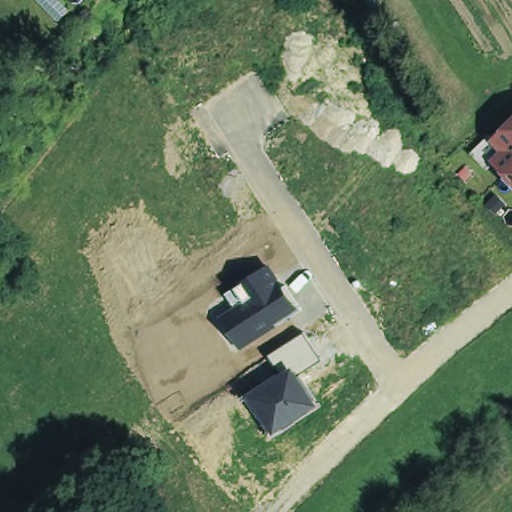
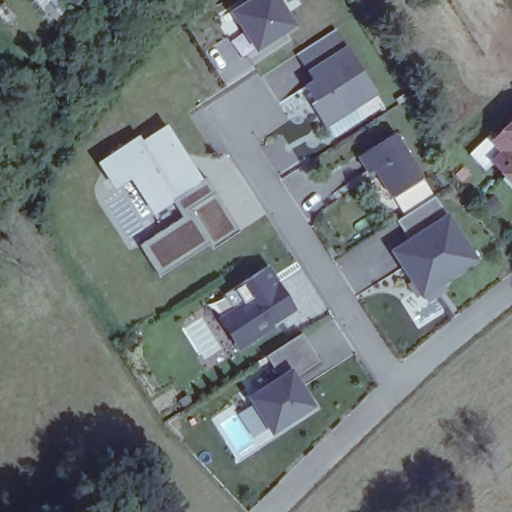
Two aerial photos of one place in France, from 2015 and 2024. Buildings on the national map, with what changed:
unchanged [(33,0),(62,0),(75,15),(59,30),(33,0)]
new [(256,54),(230,14),(251,0),(279,0),(298,27),(256,54)]
new [(346,45),(377,92),(325,126),(311,104),(316,100),(305,85),(312,79),(295,54),(335,29),(346,45)]
unchanged [(498,152),(486,138),(512,114),(512,184),(490,163),(498,152)]
new [(204,180),(173,201),(154,214),(130,179),(116,188),(98,161),(138,134),(142,140),(167,123),(204,180)]
new [(425,176),(392,197),(374,170),(367,174),(357,155),(397,130),(425,176)]
new [(206,178),(240,230),(213,247),(209,242),(160,275),(140,245),(184,216),(173,201),(204,180),(206,178)]
new [(447,214),(476,260),(421,297),(391,250),(410,238),(398,221),(436,196),(447,214)]
unchanged [(240,350),(221,316),(233,307),(226,293),(271,265),(299,312),(240,350)]
unchanged [(272,435),(246,396),(277,375),(266,356),(303,333),(320,361),(297,375),(317,405),(272,435)]

